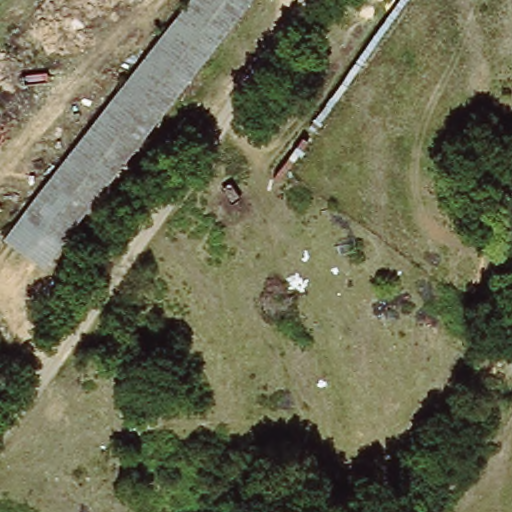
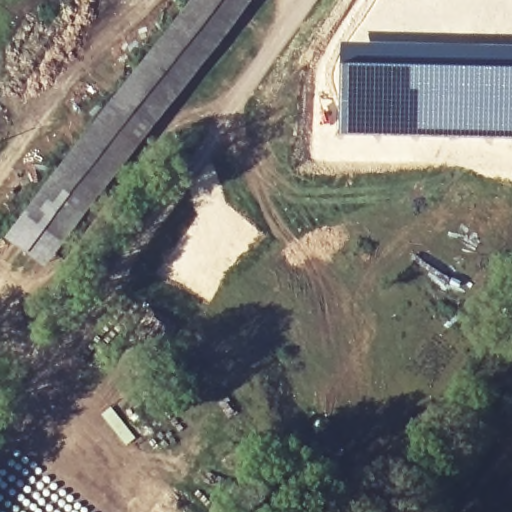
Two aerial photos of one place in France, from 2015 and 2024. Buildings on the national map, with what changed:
unchanged [(11,242),(188,0),(240,0),(46,269),(11,242)]
new [(341,42),(512,45),(512,137),(476,135),(338,137),(341,42)]

